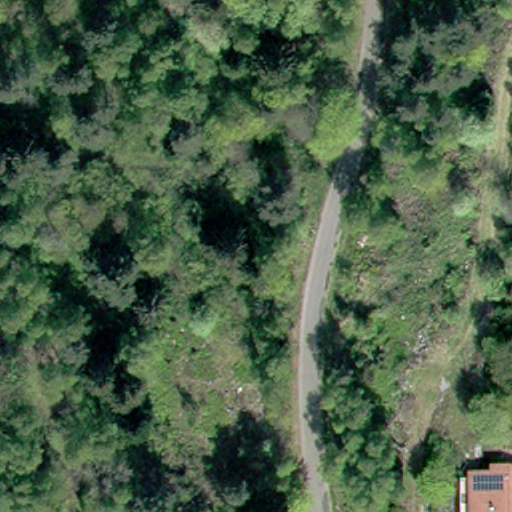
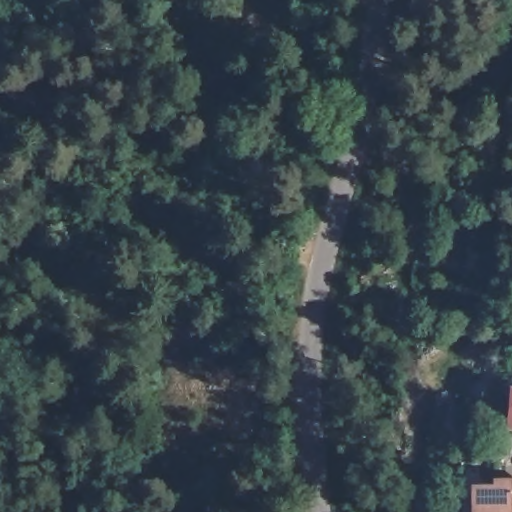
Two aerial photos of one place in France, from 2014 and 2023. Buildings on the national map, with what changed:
new [(512,384),(512,428),(503,427),(508,384),(512,384)]
unchanged [(512,475),(512,512),(468,512),(467,482),(498,482),(498,475),(512,475)]

